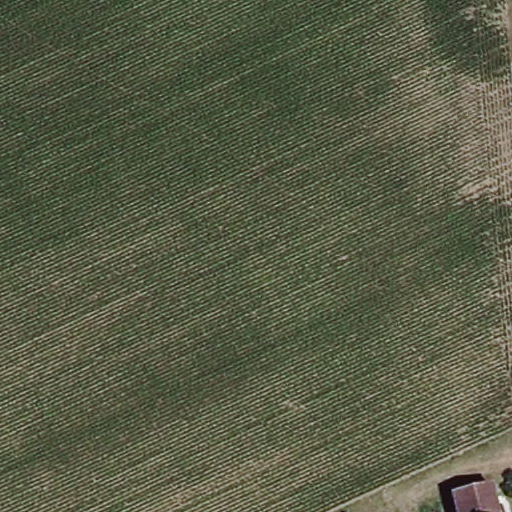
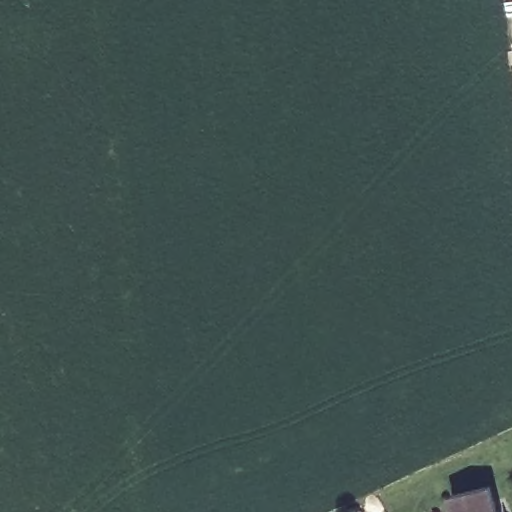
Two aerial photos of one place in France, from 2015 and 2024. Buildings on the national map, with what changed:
unchanged [(490,483),(498,512),(462,512),(457,493),(490,483)]

